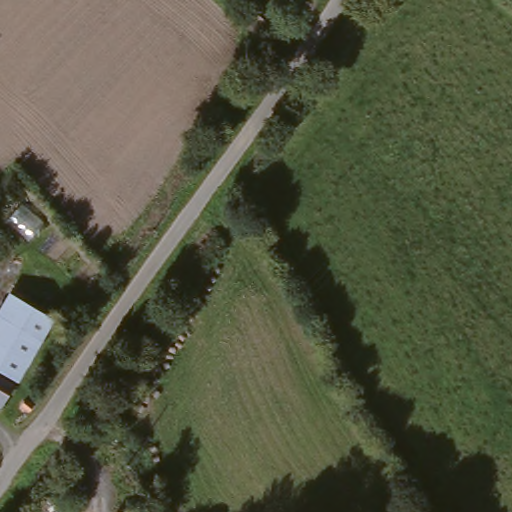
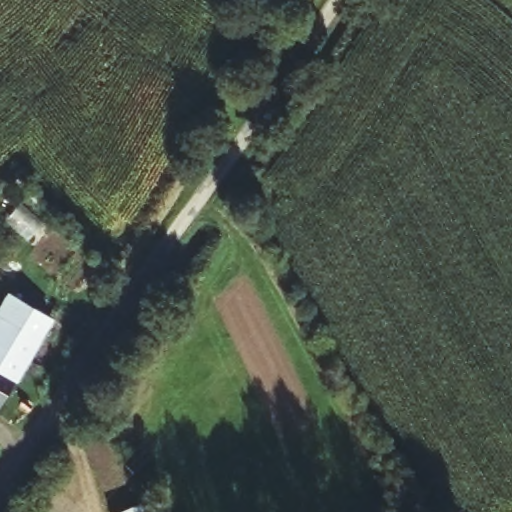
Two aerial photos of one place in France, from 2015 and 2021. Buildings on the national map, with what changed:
unchanged [(46,325),(10,384),(0,379),(0,303),(2,299),(46,325)]
unchanged [(0,401),(0,379),(10,384),(0,401)]

